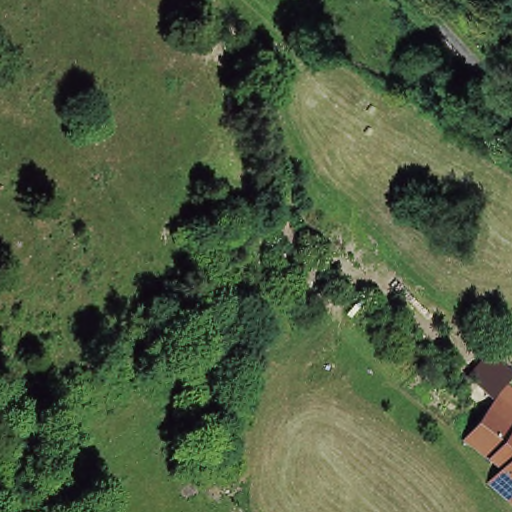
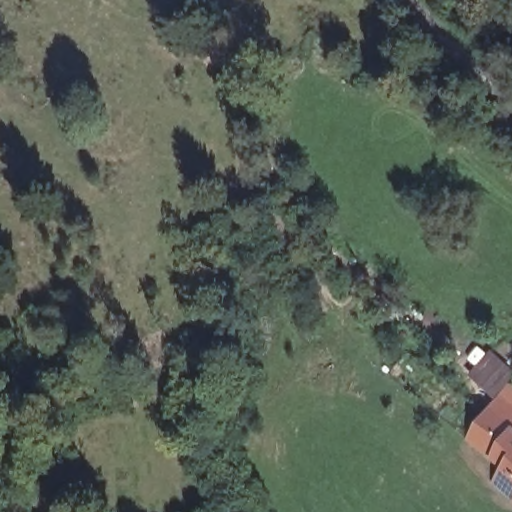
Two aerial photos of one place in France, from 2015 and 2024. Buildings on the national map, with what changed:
unchanged [(498,476),(500,474),(490,464),(465,440),(499,405),(512,392),(512,507),(488,485),(498,476)]

